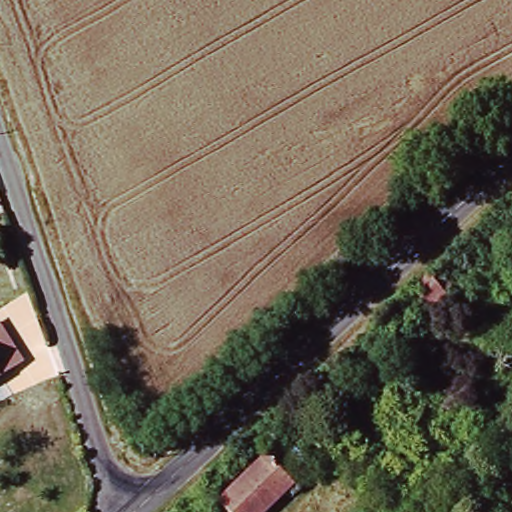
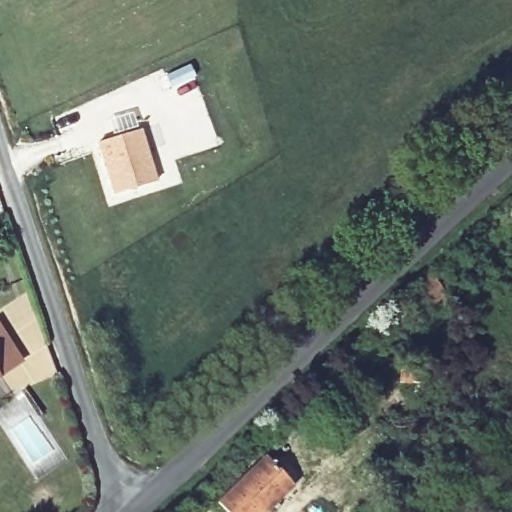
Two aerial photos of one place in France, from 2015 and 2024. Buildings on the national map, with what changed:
new [(139,129),(156,180),(113,194),(97,143),(139,129)]
unchanged [(435,263),(453,282),(410,325),(392,303),(435,263)]
unchanged [(401,375),(404,343),(437,347),(433,392),(423,391),(424,377),(401,375)]
unchanged [(219,502),(263,458),(291,487),(267,512),(229,512),(219,502)]

